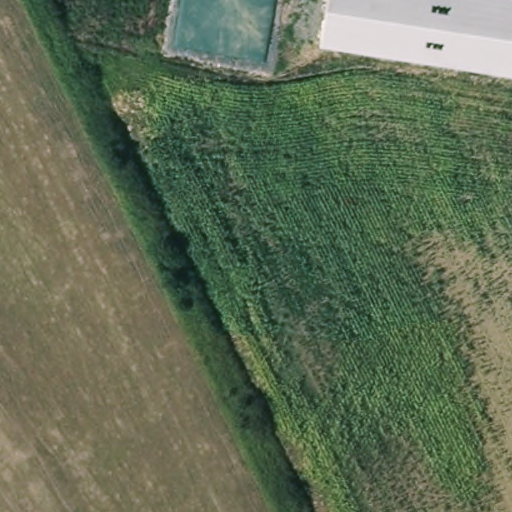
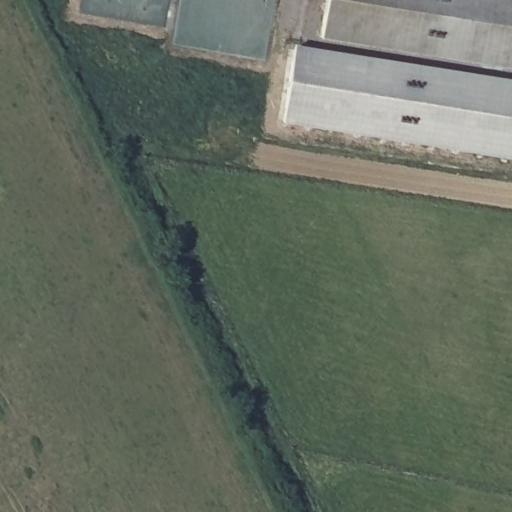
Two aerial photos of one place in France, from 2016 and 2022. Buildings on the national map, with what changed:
unchanged [(326,0),(512,0),(512,69),(320,43),(326,0)]
new [(293,48),(512,83),(512,161),(281,126),(293,48)]

